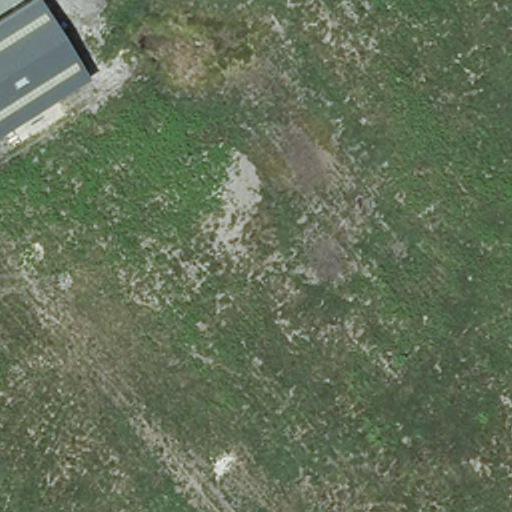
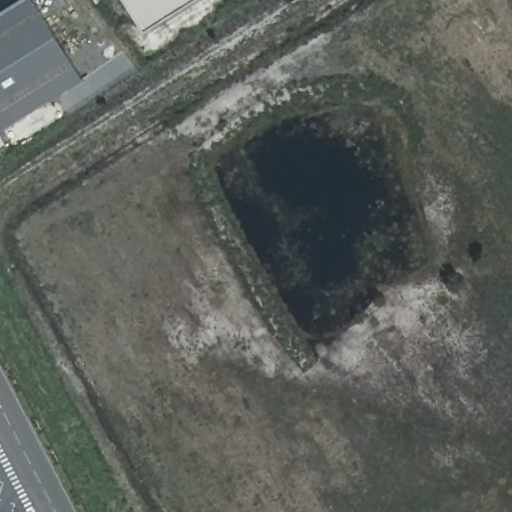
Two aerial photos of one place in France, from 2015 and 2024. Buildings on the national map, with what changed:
unchanged [(82,80),(0,132),(0,16),(25,0),(33,0),(82,80)]
new [(147,32),(127,0),(197,0),(147,32)]

